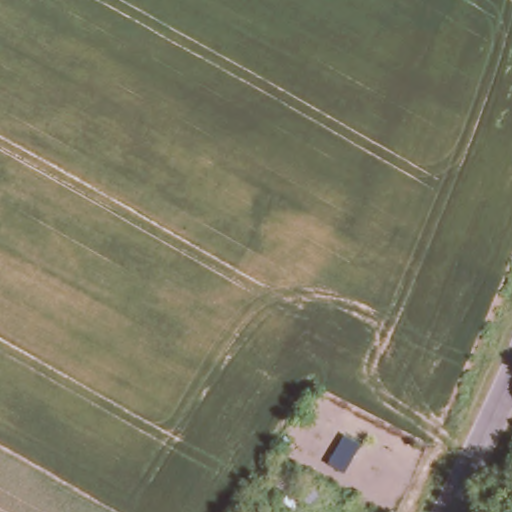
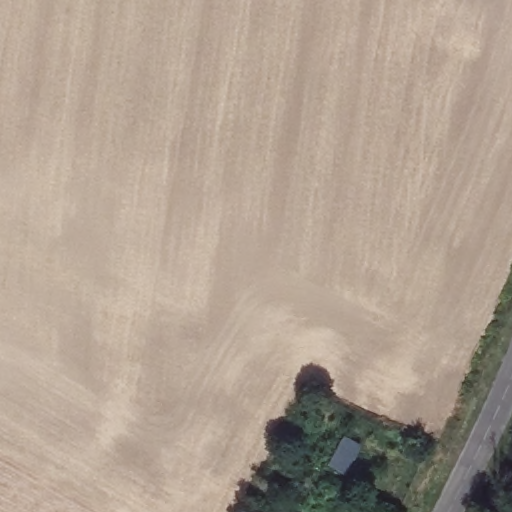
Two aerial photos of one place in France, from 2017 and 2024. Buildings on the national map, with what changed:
unchanged [(343,431),(367,443),(350,475),(329,466),(343,431)]

